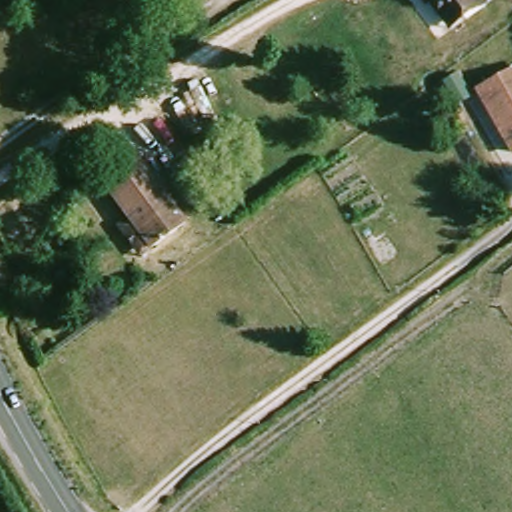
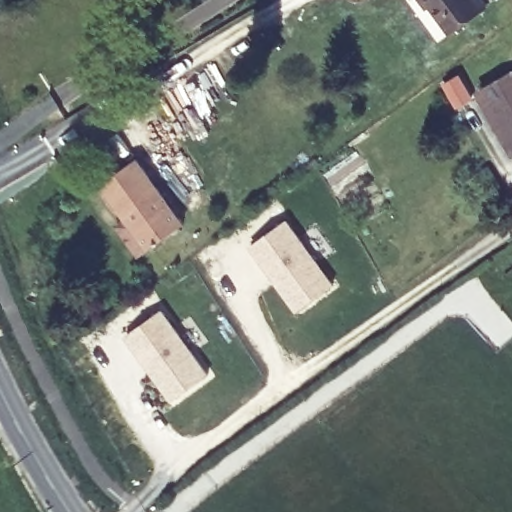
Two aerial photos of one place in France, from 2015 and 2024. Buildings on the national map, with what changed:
unchanged [(442,20),(427,0),(483,0),(486,5),(466,20),(451,31),(442,20)]
unchanged [(512,75),(512,152),(480,94),(512,75)]
unchanged [(117,225),(127,218),(102,185),(136,160),(184,223),(150,249),(140,255),(117,225)]
new [(251,246),(287,219),(335,284),(296,310),(251,246)]
new [(125,336),(164,310),(210,374),(174,402),(125,336)]

